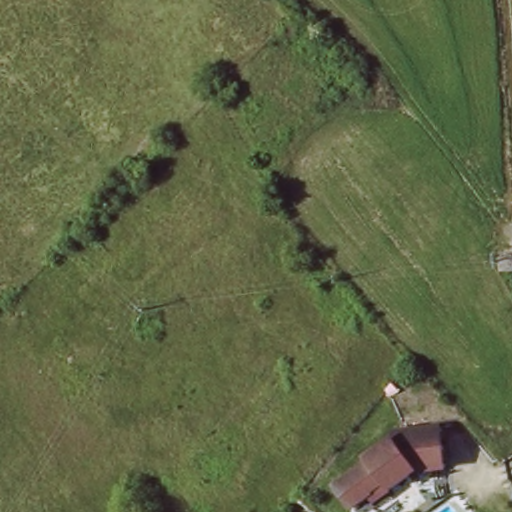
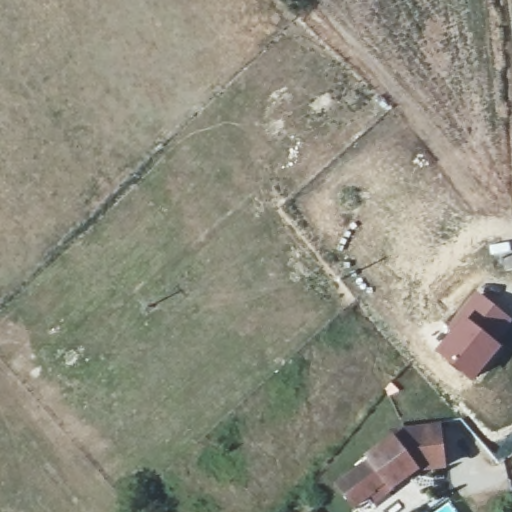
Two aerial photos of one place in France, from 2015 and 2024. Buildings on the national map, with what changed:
new [(449,329),(447,326),(475,290),(512,319),(512,323),(498,344),(502,347),(472,383),(433,351),(449,329)]
unchanged [(371,489),(353,503),(335,480),(368,455),(365,451),(389,433),(388,425),(434,418),(441,458),(412,462),(388,481),(374,493),(371,489)]

